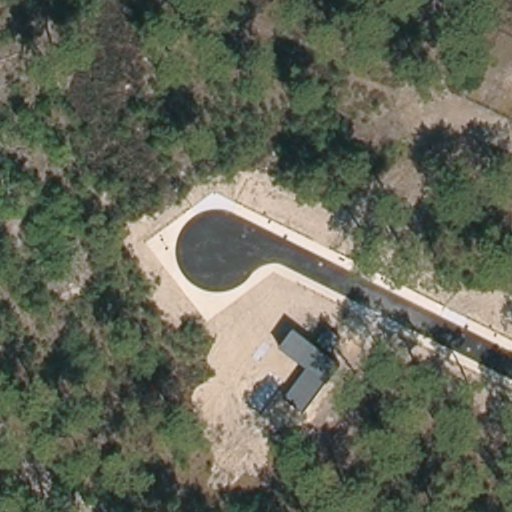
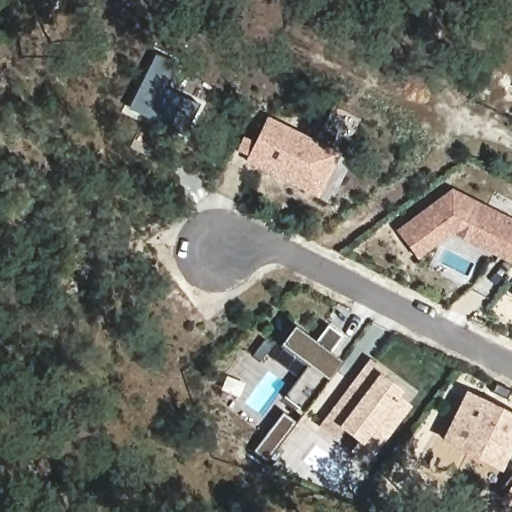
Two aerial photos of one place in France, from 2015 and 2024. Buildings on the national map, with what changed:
new [(199,103),(183,136),(129,108),(159,50),(180,60),(168,87),(199,103)]
new [(341,152),(319,197),(246,161),(268,116),(341,152)]
new [(451,233),(418,259),(397,231),(453,187),(512,218),(512,264),(451,233)]
unchanged [(302,411),(284,398),(307,367),(276,345),(293,325),(341,363),(302,411)]
new [(319,426),(371,359),(384,369),(381,372),(404,392),(401,397),(413,405),(369,464),(349,449),(355,441),(343,431),(336,439),(319,426)]
new [(502,473),(441,442),(466,391),(512,415),(512,452),(502,473)]
new [(499,500),(508,488),(504,486),(512,475),(512,510),(499,500)]

